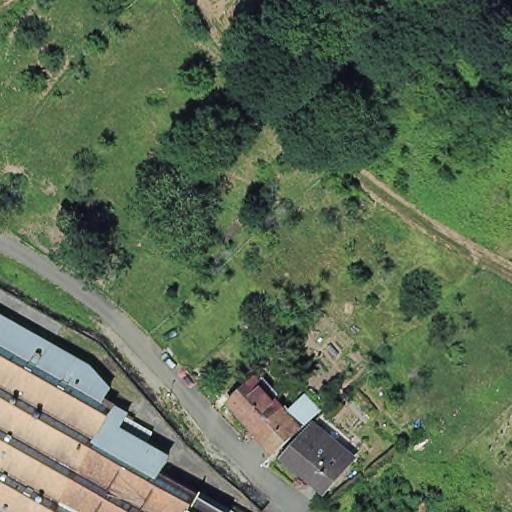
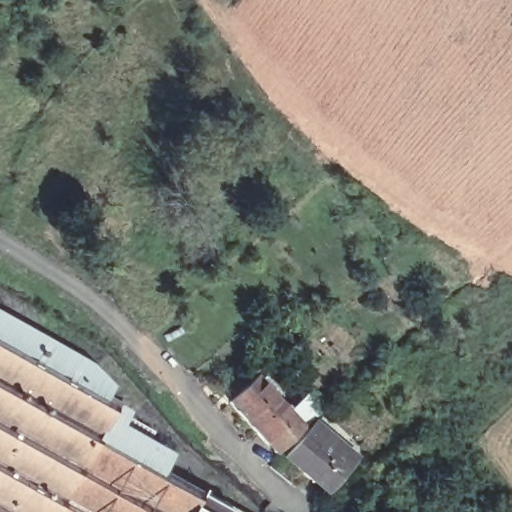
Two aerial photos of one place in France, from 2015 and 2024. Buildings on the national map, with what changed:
unchanged [(0,315),(44,338),(32,358),(0,341),(0,315)]
unchanged [(44,338),(89,365),(110,387),(104,398),(32,358),(44,338)]
unchanged [(115,404),(128,411),(120,426),(122,428),(129,417),(151,430),(145,440),(166,453),(167,459),(160,472),(97,436),(55,512),(0,512),(0,341),(32,358),(104,398),(115,404)]
unchanged [(302,400),(317,414),(297,432),(270,457),(252,437),(224,406),(251,381),(254,385),(259,381),(273,397),(269,401),(280,413),(284,417),(302,400)]
unchanged [(320,493),(280,461),(309,427),(347,461),(320,493)]
unchanged [(97,436),(160,472),(197,493),(215,503),(230,512),(55,512),(97,436)]

